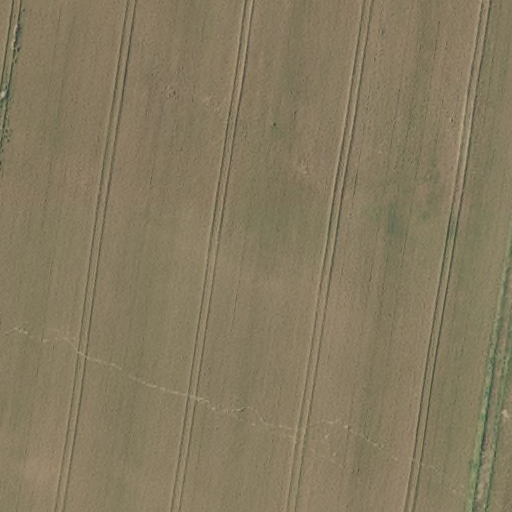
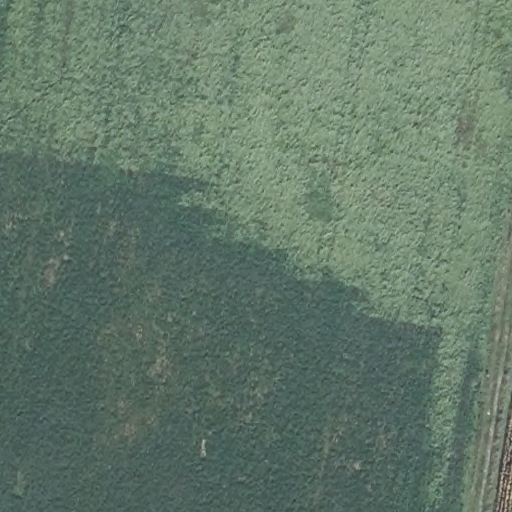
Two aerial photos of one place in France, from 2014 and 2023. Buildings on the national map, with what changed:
[]

